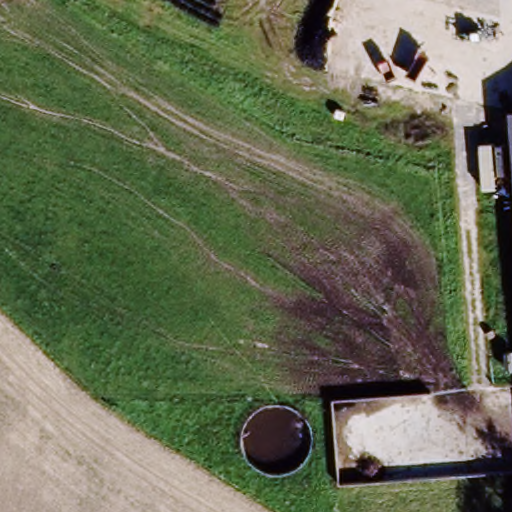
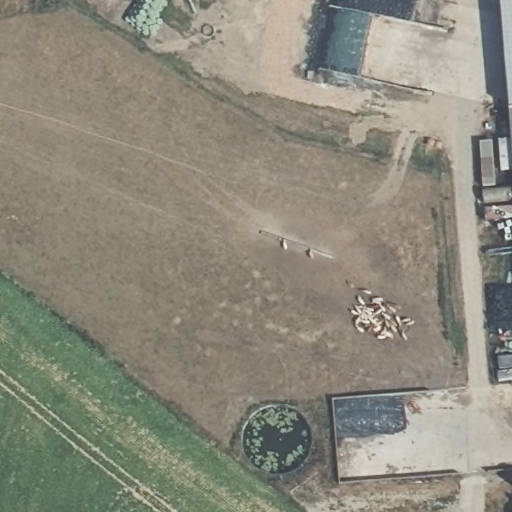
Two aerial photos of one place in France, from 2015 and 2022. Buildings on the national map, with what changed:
new [(501,0),(512,0),(512,107),(508,108),(501,0)]
unchanged [(512,107),(512,154),(508,108),(512,107)]

